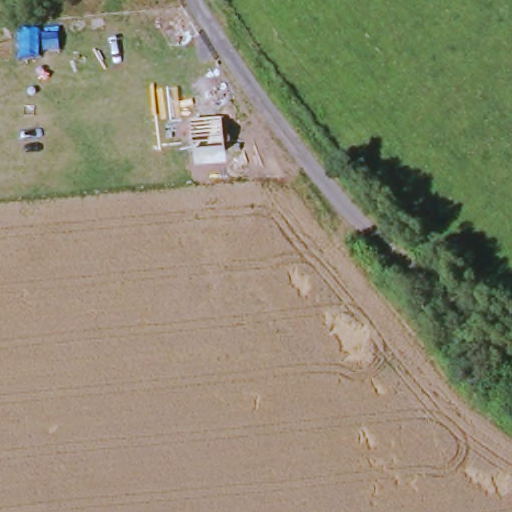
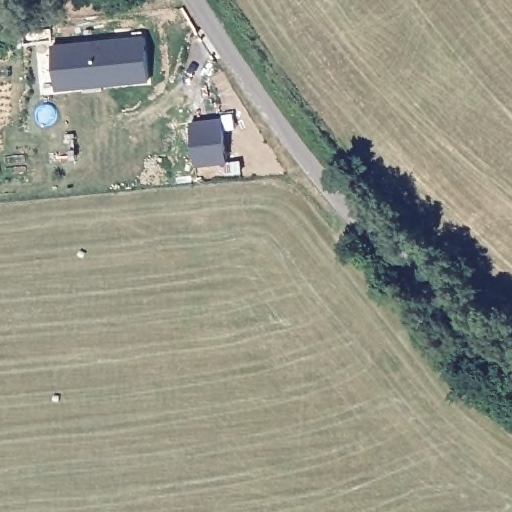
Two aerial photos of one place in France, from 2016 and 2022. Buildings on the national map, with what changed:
new [(53,44),(144,37),(148,82),(56,90),(53,44)]
new [(221,119),(226,162),(195,166),(188,123),(221,119)]

